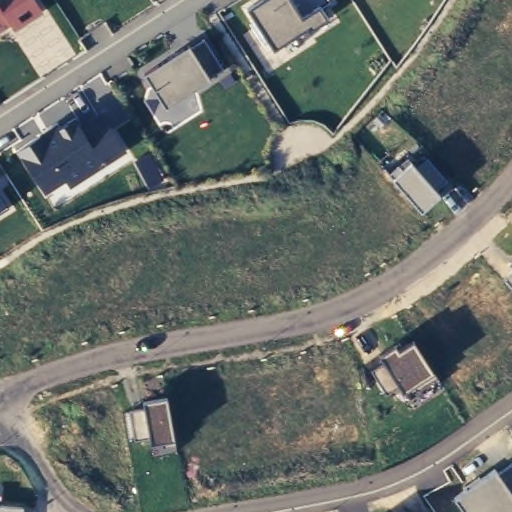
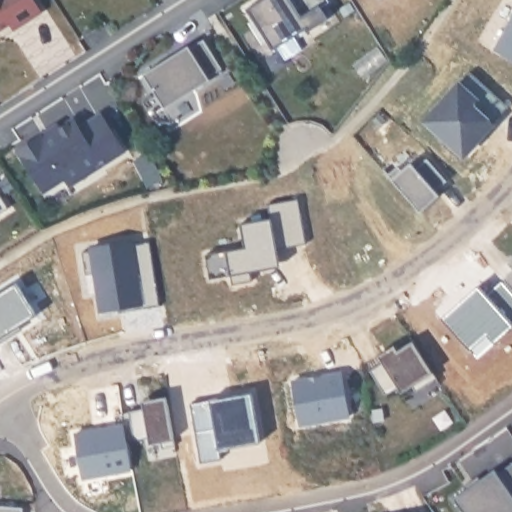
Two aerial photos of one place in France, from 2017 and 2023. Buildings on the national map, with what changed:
unchanged [(9,26),(0,32),(0,0),(36,0),(45,14),(14,34),(9,26)]
unchanged [(329,20),(308,34),(304,28),(271,49),(245,9),(258,0),(330,0),(331,3),(321,8),(329,20)]
new [(512,18),(512,58),(495,49),(512,18)]
unchanged [(163,104),(142,74),(203,35),(223,69),(163,104)]
new [(467,69),(505,104),(461,153),(423,117),(467,69)]
unchanged [(71,189),(66,180),(46,195),(15,150),(72,114),(80,124),(101,110),(128,152),(71,189)]
unchanged [(388,174),(407,158),(417,166),(427,158),(447,180),(436,190),(441,194),(422,212),(388,174)]
unchanged [(0,216),(0,191),(12,209),(0,216)]
new [(247,248),(243,224),(273,219),(271,205),(302,201),(309,246),(271,252),(274,269),(252,273),(253,283),(233,285),(232,276),(211,279),(207,254),(247,248)]
new [(121,311),(121,307),(101,310),(99,292),(96,273),(86,274),(82,253),(93,251),(92,248),(131,242),(132,246),(150,243),(159,301),(160,305),(121,311)]
unchanged [(512,261),(512,265),(510,263),(512,261)]
unchanged [(512,288),(504,279),(512,271),(512,288)]
new [(21,280),(43,314),(0,342),(0,294),(21,280)]
unchanged [(383,360),(380,354),(394,346),(399,351),(415,340),(437,377),(418,389),(416,383),(403,392),(398,384),(386,394),(371,369),(383,360)]
new [(292,378),(341,369),(349,414),(300,422),(292,378)]
unchanged [(173,439),(151,443),(149,434),(136,439),(131,409),(144,405),(143,399),(166,397),(173,439)]
new [(124,425),(132,470),(83,479),(75,434),(124,425)]
unchanged [(512,512),(465,512),(454,497),(512,462),(512,512)]
unchanged [(23,508),(22,512),(0,512),(0,506),(23,508)]

